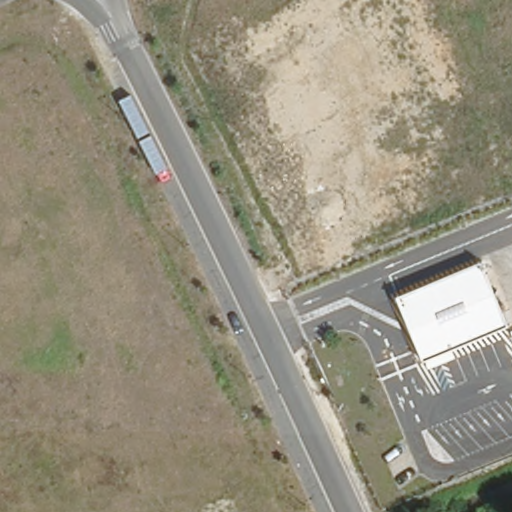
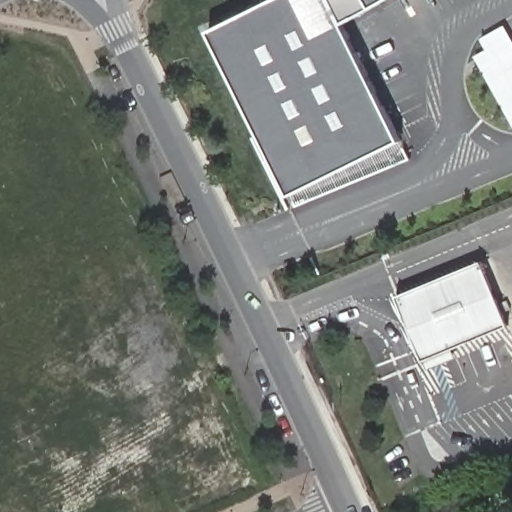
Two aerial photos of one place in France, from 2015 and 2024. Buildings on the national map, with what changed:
new [(404,140),(292,195),(210,30),(270,0),(334,0),(346,22),(404,140)]
new [(346,22),(334,0),(372,0),(376,5),(346,22)]
new [(372,0),(385,0),(376,5),(372,0)]
new [(475,56),(486,49),(480,38),(504,25),(512,39),(512,124),(475,56)]
unchanged [(453,348),(456,357),(428,369),(423,359),(398,295),(482,261),(508,324),(453,348)]

